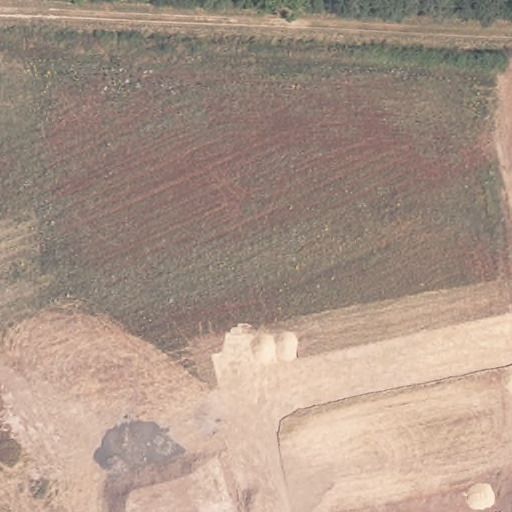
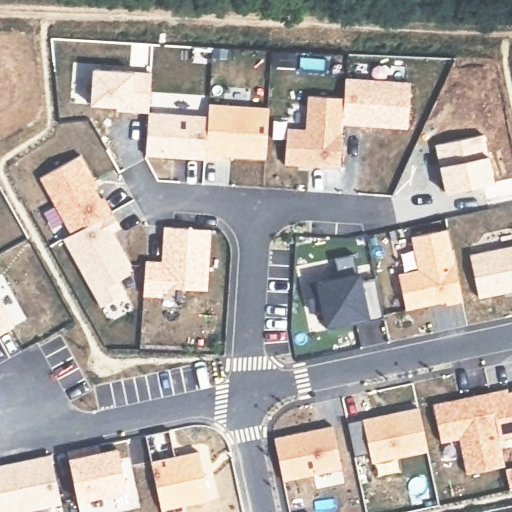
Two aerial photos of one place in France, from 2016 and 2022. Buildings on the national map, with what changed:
new [(149,111),(149,113),(116,111),(115,106),(88,105),(92,66),(133,70),(152,72),(149,111)]
new [(343,124),(340,167),(284,163),(286,139),(272,139),(273,119),(288,120),(288,127),(306,128),(309,94),(343,96),(345,77),(411,81),(408,128),(343,124)]
new [(267,159),(224,156),(224,159),(146,155),(149,113),(149,111),(208,114),(208,102),(269,106),(267,159)]
new [(489,154),(495,182),(446,192),(439,165),(434,144),(484,133),(489,154)]
new [(120,280),(127,292),(100,307),(61,238),(71,233),(40,177),(81,154),(100,187),(96,188),(102,198),(105,196),(122,227),(115,231),(132,262),(132,273),(120,280)]
new [(208,290),(162,288),(161,296),(143,295),(146,260),(161,261),(163,225),(211,228),(208,290)]
new [(454,262),(456,261),(464,301),(446,305),(445,301),(407,310),(398,272),(417,268),(410,235),(447,228),(454,262)]
new [(467,253),(512,244),(512,291),(478,298),(467,253)]
new [(369,316),(363,317),(324,326),(321,308),(311,311),(304,283),(316,280),(360,271),(362,281),(376,278),(385,317),(369,316)]
new [(0,335),(0,297),(15,325),(0,335)]
new [(504,466),(465,473),(459,439),(440,442),(433,402),(507,387),(508,391),(512,390),(512,436),(499,438),(504,466)]
new [(373,462),(362,417),(419,406),(429,450),(373,462)]
new [(283,480),(274,436),(332,425),(342,468),(283,480)]
new [(210,500),(162,511),(145,434),(170,429),(175,455),(200,450),(210,500)]
new [(128,490),(78,500),(67,457),(66,451),(98,444),(99,450),(118,447),(128,490)]
new [(25,512),(0,512),(0,464),(51,453),(63,503),(25,512)]

